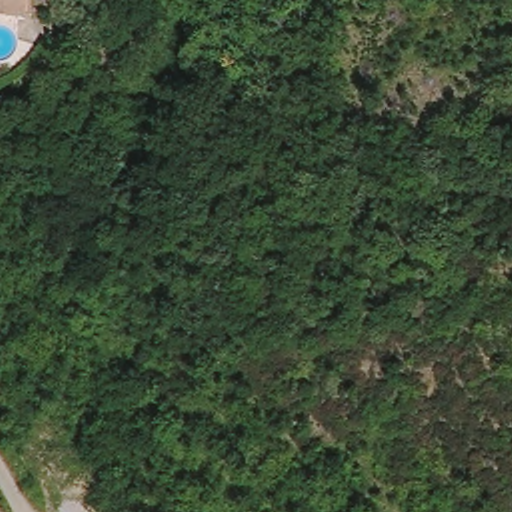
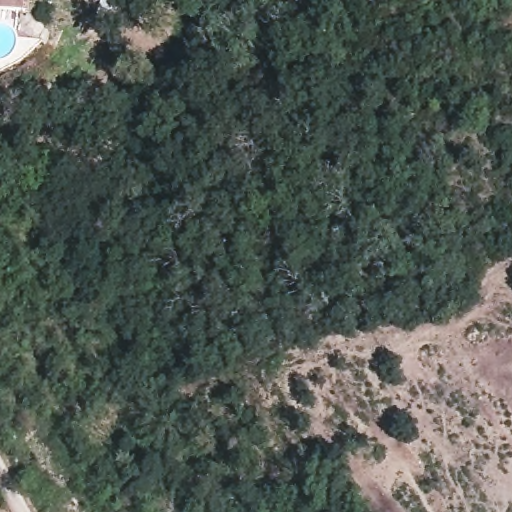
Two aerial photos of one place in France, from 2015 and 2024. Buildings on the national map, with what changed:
unchanged [(0,9),(0,0),(23,0),(22,11),(0,9)]

